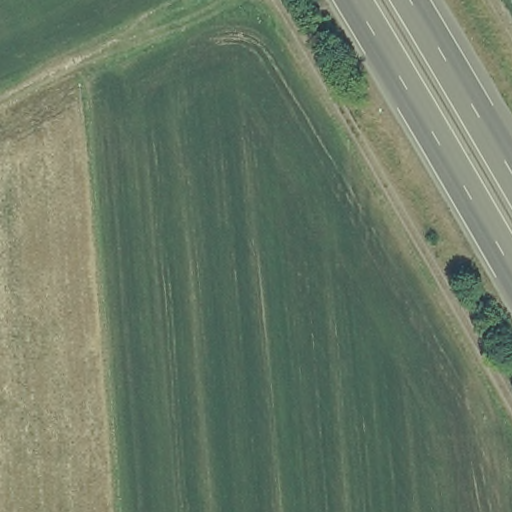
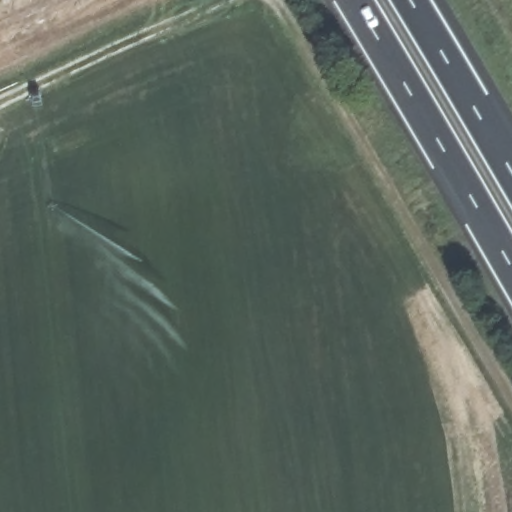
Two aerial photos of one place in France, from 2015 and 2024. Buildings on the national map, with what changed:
[]

